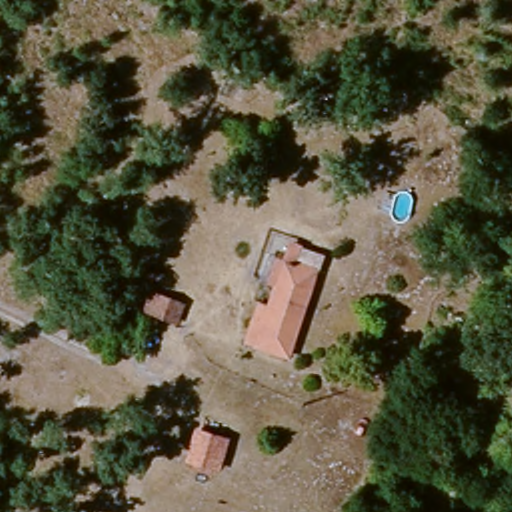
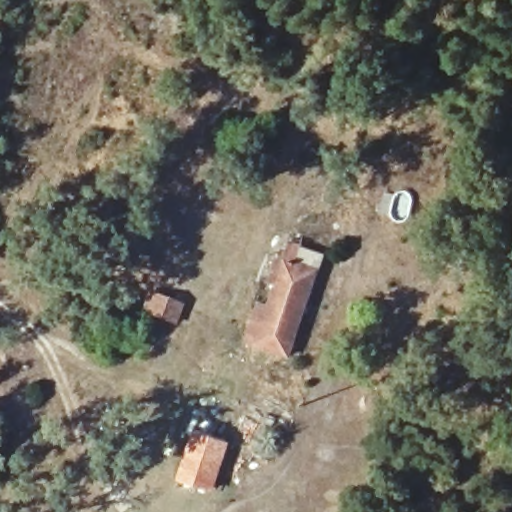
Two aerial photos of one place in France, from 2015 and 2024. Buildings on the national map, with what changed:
unchanged [(290,359),(249,343),(265,301),(276,304),(294,257),(307,261),(312,251),(329,258),(290,359)]
unchanged [(159,302),(155,327),(125,321),(129,296),(159,302)]
unchanged [(202,422),(235,434),(217,485),(182,473),(202,422)]

